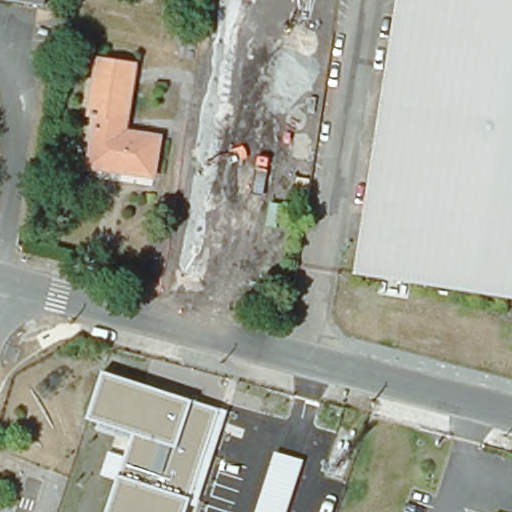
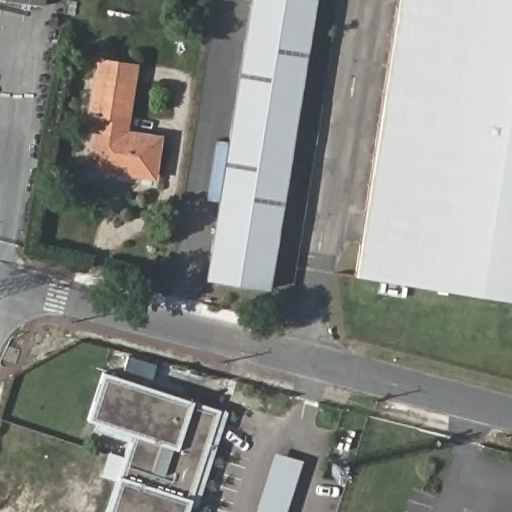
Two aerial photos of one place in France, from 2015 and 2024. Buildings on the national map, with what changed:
unchanged [(5,0),(51,0),(50,7),(5,0)]
new [(207,279),(253,0),(317,0),(271,290),(207,279)]
unchanged [(512,0),(512,299),(350,275),(394,0),(512,0)]
unchanged [(124,136),(157,142),(152,179),(85,168),(94,116),(87,115),(97,61),(136,67),(124,136)]
demolished [(288,200),(274,197),(266,225),(277,228),(267,263),(233,254),(242,223),(232,219),(247,160),(296,173),(288,200)]
unchanged [(193,401),(193,402),(226,411),(198,506),(191,504),(191,502),(187,512),(108,512),(119,478),(115,478),(102,475),(109,451),(126,457),(127,457),(134,436),(136,435),(90,419),(104,373),(193,401)]
unchanged [(275,453),(304,461),(287,512),(256,512),(275,453)]

